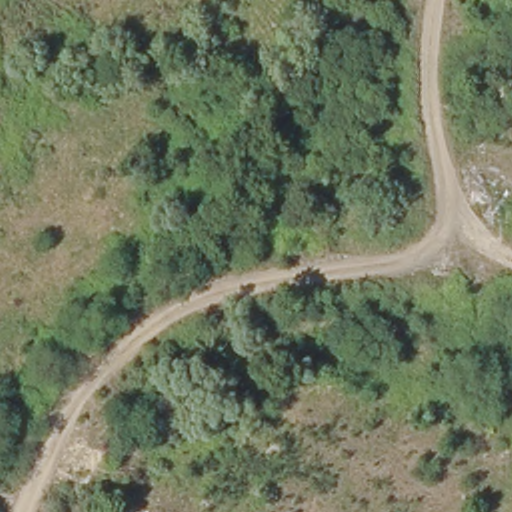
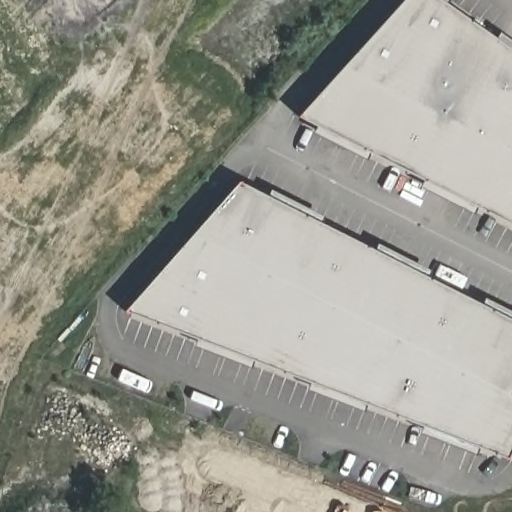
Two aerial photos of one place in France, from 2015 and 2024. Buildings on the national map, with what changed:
new [(480,206),(476,212),(422,185),(426,179),(370,152),(367,157),(318,133),(320,126),(298,115),(404,0),(451,0),(448,3),(497,36),(501,31),(512,39),(512,222),(480,206)]
new [(507,457),(481,446),(478,454),(422,433),(425,427),(366,403),(365,410),(311,388),(314,383),(255,359),(251,367),(197,345),(199,340),(127,310),(240,179),(270,195),(273,190),(327,219),(325,224),(378,249),(381,245),(432,270),(430,276),(485,304),(490,298),(512,311),(512,448),(507,457)]

